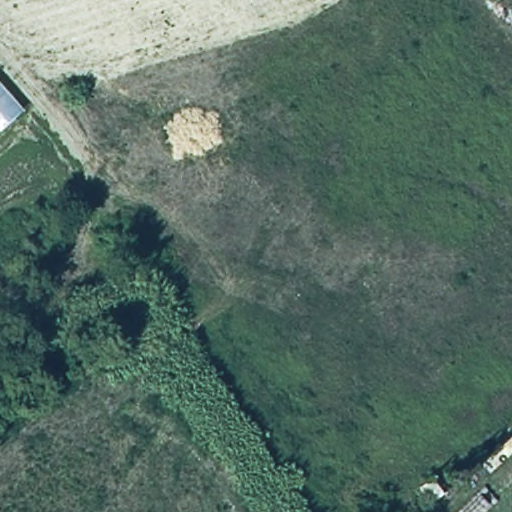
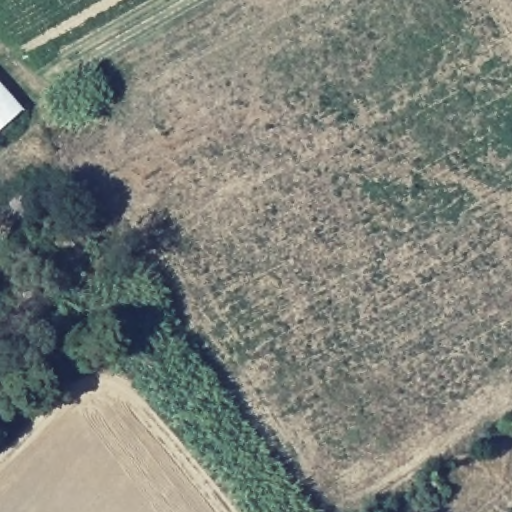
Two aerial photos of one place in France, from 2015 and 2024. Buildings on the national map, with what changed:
unchanged [(0,86),(23,111),(0,131),(0,86)]

